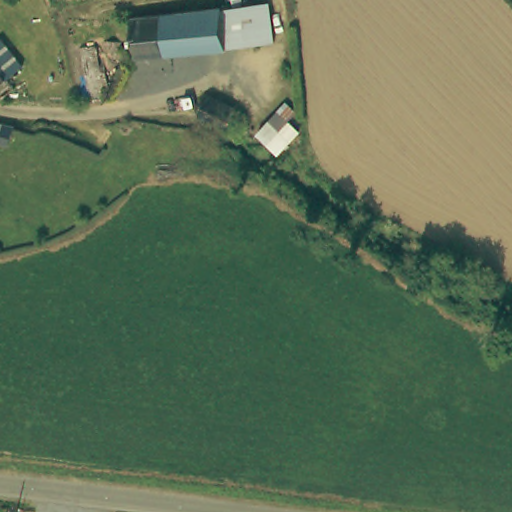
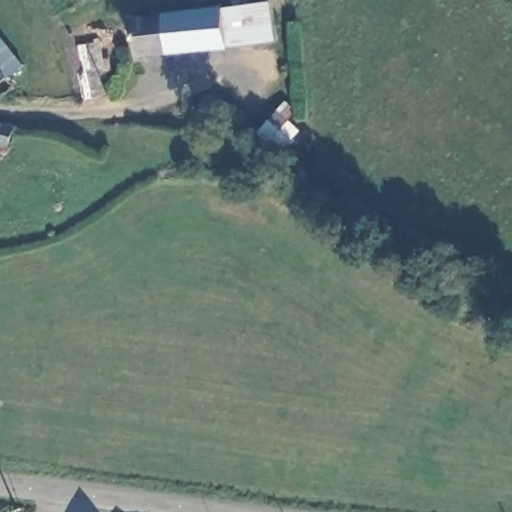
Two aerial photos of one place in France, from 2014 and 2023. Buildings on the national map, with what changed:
unchanged [(138,13),(272,1),(278,38),(141,51),(138,13)]
unchanged [(28,70),(13,80),(0,90),(0,34),(28,70)]
unchanged [(259,130),(289,96),(302,106),(293,115),(305,126),(281,151),(259,130)]
unchanged [(0,141),(0,115),(20,118),(15,144),(0,141)]

